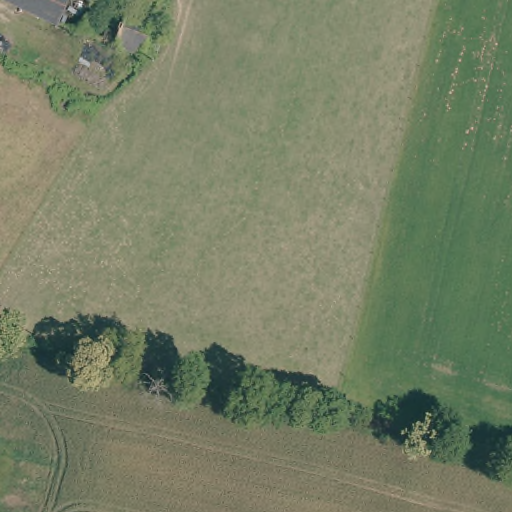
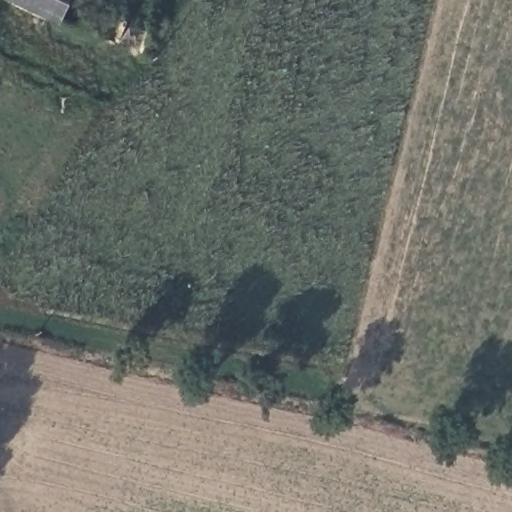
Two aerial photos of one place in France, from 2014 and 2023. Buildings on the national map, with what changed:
unchanged [(33,0),(73,0),(67,15),(33,0)]
unchanged [(160,48),(144,42),(71,15),(67,15),(73,0),(157,0),(155,11),(166,17),(170,19),(160,48)]

